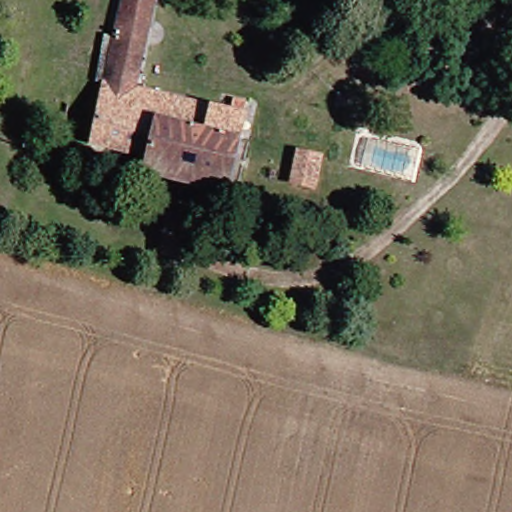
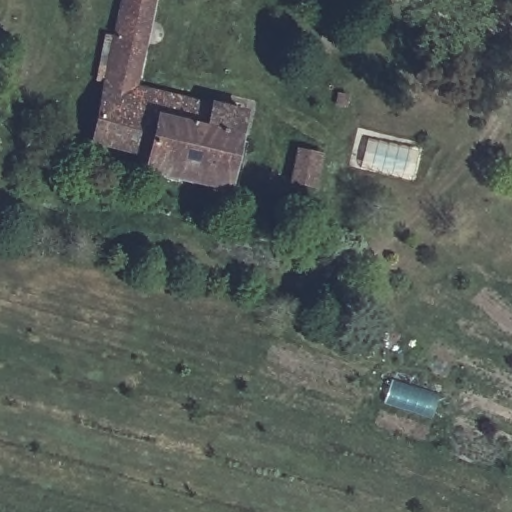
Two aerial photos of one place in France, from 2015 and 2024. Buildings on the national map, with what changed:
unchanged [(142,85),(233,103),(237,89),(253,92),(234,179),(148,160),(150,152),(97,140),(123,0),(157,0),(142,85)]
unchanged [(301,149),(322,153),(316,185),(293,179),(301,149)]
unchanged [(232,191),(146,174),(148,160),(234,179),(232,191)]

